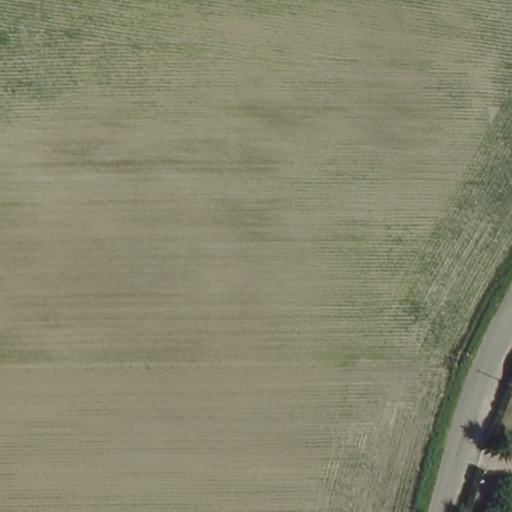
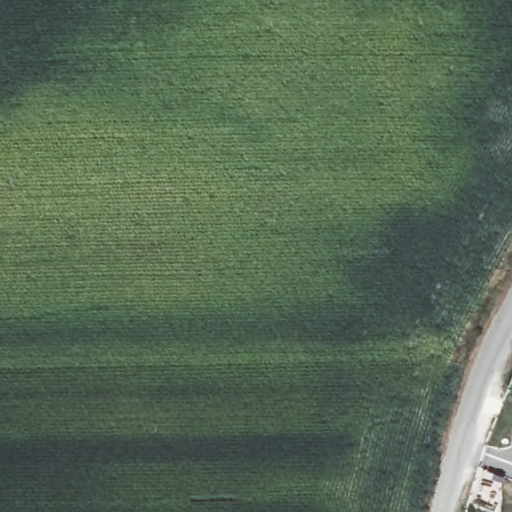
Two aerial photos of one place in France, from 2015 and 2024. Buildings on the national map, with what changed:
[]

